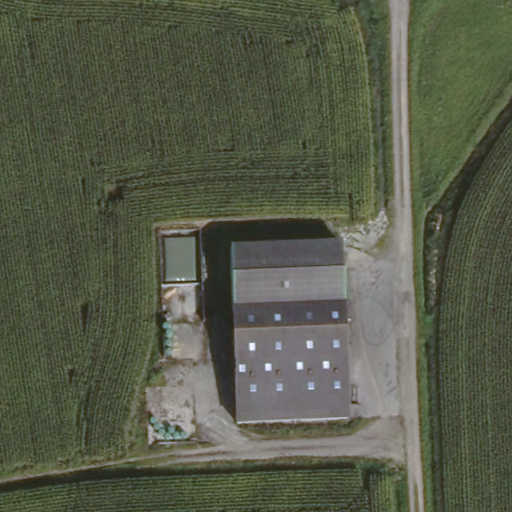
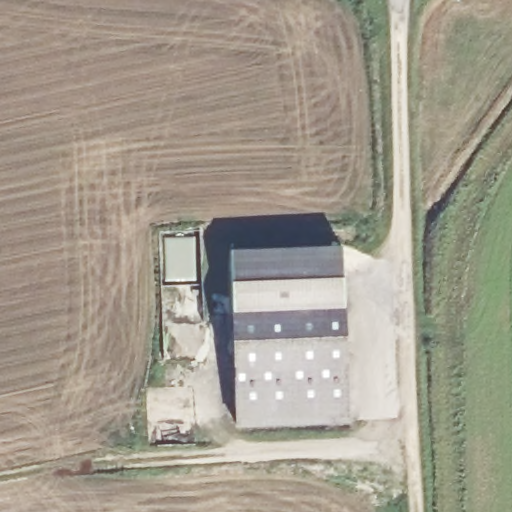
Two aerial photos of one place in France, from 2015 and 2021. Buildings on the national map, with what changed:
unchanged [(347,244),(352,419),(236,422),(235,249),(347,244)]

